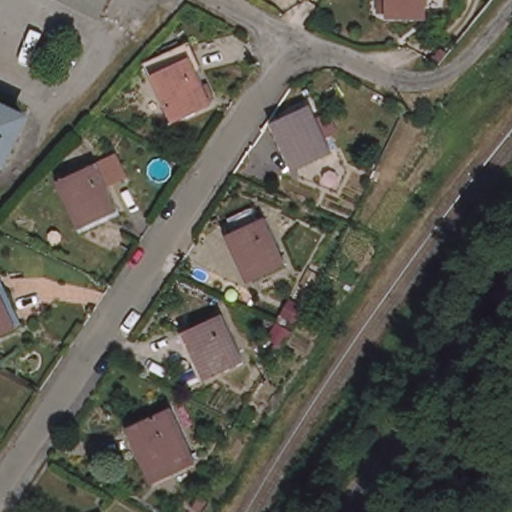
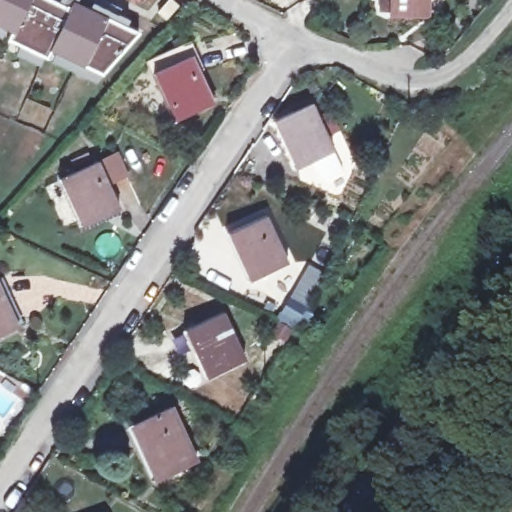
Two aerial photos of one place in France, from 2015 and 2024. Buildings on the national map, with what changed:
new [(73,0),(140,34),(100,74),(52,52),(48,57),(10,39),(13,32),(0,26),(0,0),(54,0),(70,7),(73,0)]
demolished [(109,0),(102,14),(74,0),(109,0)]
unchanged [(166,2),(167,0),(182,0),(178,7),(166,2)]
unchanged [(432,0),(432,7),(398,7),(384,7),(384,0),(432,0)]
unchanged [(152,58),(187,42),(216,102),(181,118),(152,58)]
demolished [(8,154),(0,150),(0,103),(25,115),(8,154)]
unchanged [(300,166),(278,120),(313,103),(335,150),(300,166)]
unchanged [(86,224),(65,177),(100,161),(121,207),(86,224)]
unchanged [(254,277),(233,231),(268,215),(290,262),(254,277)]
unchanged [(302,285),(310,270),(320,275),(312,290),(302,285)]
unchanged [(0,334),(0,286),(18,326),(0,334)]
unchanged [(211,375),(190,328),(225,312),(247,358),(211,375)]
unchanged [(286,340),(272,332),(277,323),(291,332),(286,340)]
unchanged [(160,476),(135,425),(175,406),(199,459),(160,476)]
unchanged [(202,512),(193,506),(200,495),(209,500),(202,512)]

